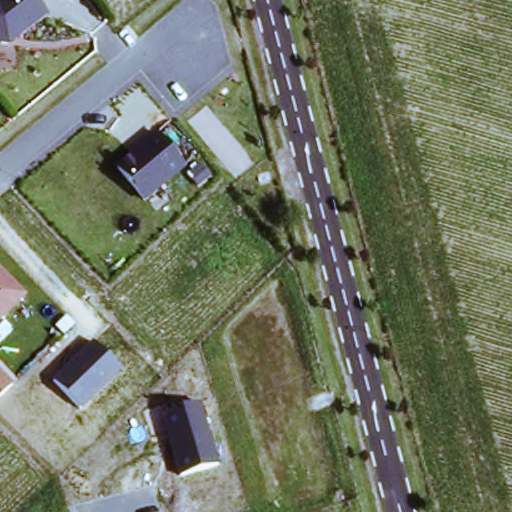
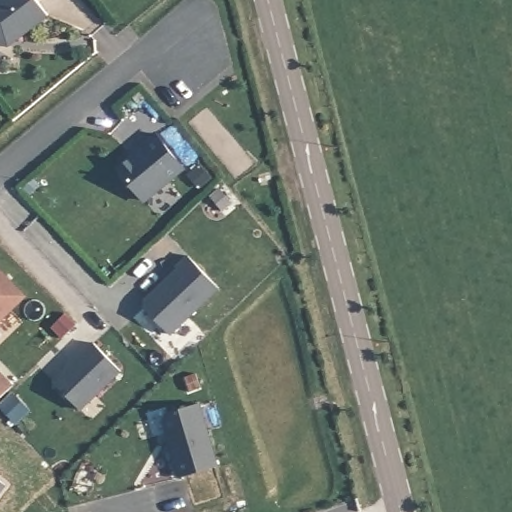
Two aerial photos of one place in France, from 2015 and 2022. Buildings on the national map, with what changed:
unchanged [(48,17),(10,48),(0,46),(0,0),(34,0),(48,17)]
unchanged [(144,207),(115,171),(155,133),(185,170),(144,207)]
new [(145,304),(180,272),(178,270),(190,259),(220,292),(171,338),(145,310),(145,304)]
unchanged [(0,325),(0,273),(27,299),(0,325)]
unchanged [(92,343),(120,370),(80,409),(55,379),(92,343)]
unchanged [(0,396),(0,370),(13,383),(0,396)]
unchanged [(163,412),(202,402),(216,465),(178,474),(163,412)]

